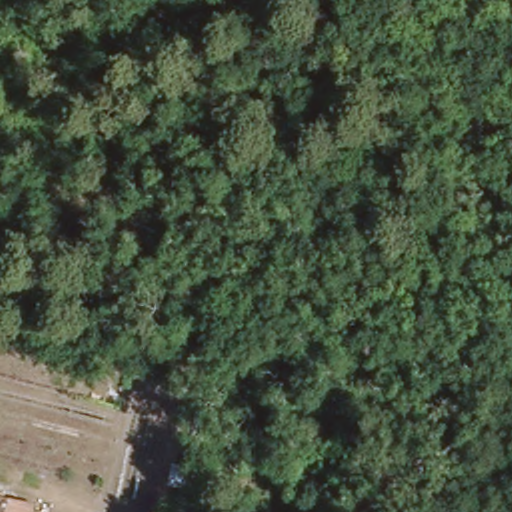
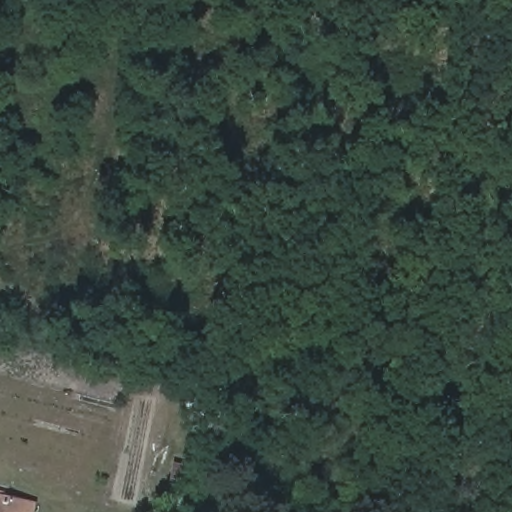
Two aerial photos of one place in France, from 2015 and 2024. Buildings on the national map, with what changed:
unchanged [(34,512),(0,512),(0,494),(36,501),(34,512)]

